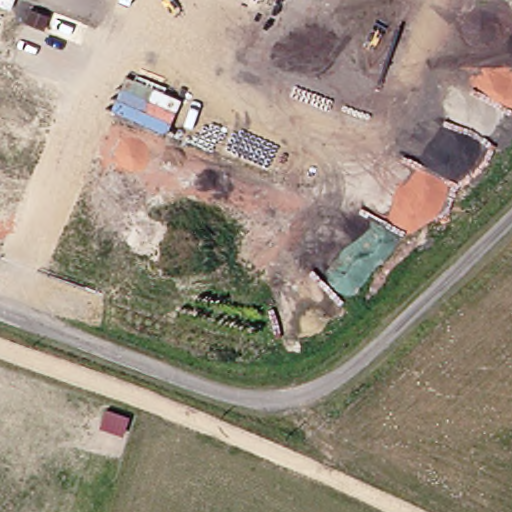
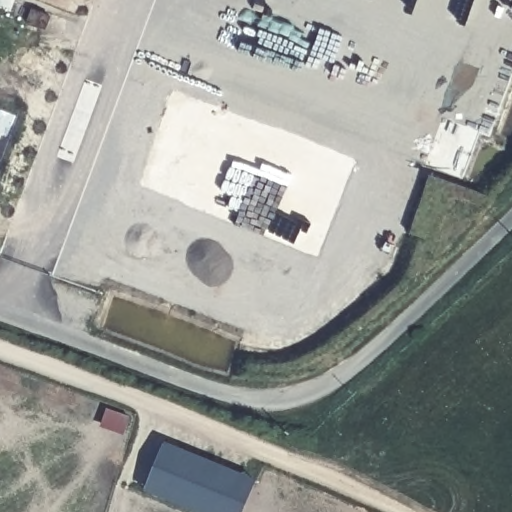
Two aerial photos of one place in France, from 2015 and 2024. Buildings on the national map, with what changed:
new [(125,436),(99,429),(106,408),(131,416),(125,436)]
new [(198,512),(146,491),(164,445),(256,483),(244,512),(198,512)]

